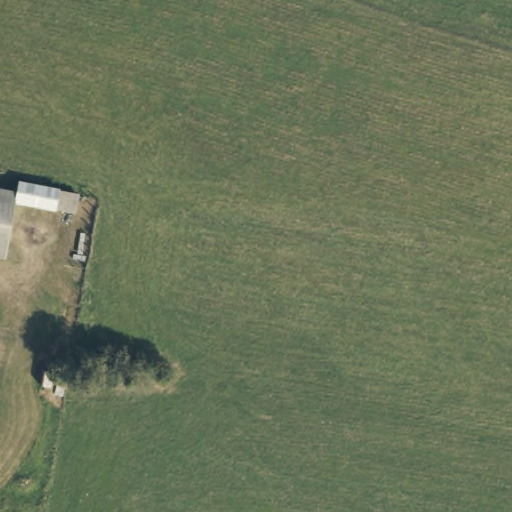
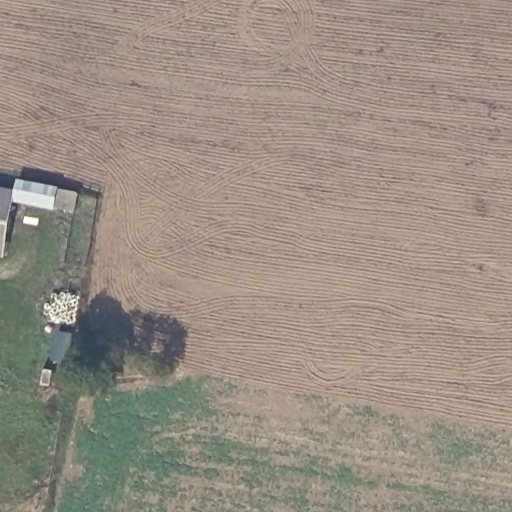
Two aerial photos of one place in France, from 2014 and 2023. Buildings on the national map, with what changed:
unchanged [(17,204),(20,190),(50,196),(59,197),(59,199),(77,202),(75,221),(16,210),(17,204)]
unchanged [(16,210),(6,263),(0,262),(0,201),(17,204),(16,210)]

